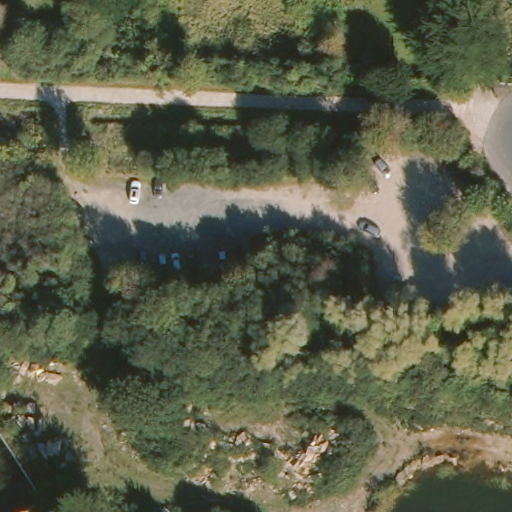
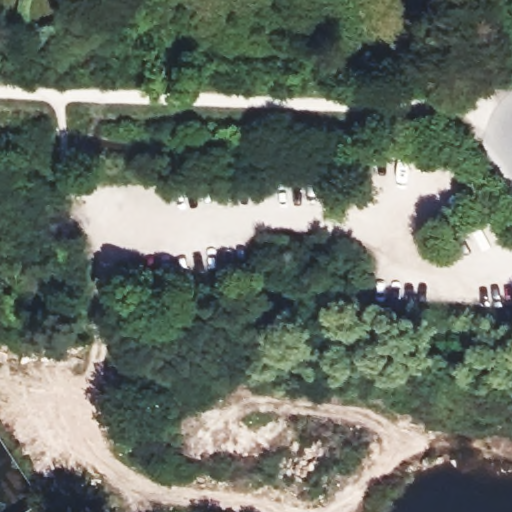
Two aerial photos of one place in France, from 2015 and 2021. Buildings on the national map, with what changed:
unchanged [(404,58),(404,72),(387,71),(387,57),(404,58)]

